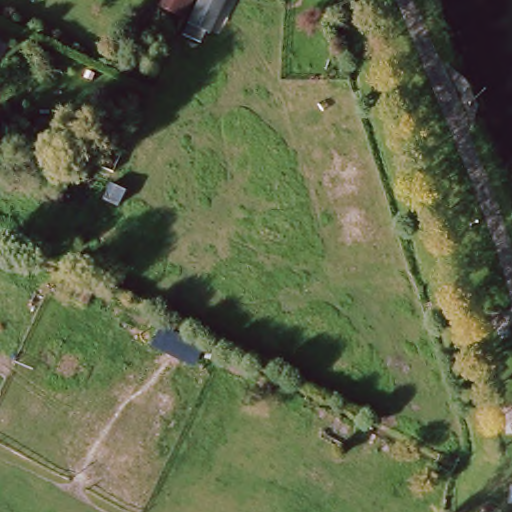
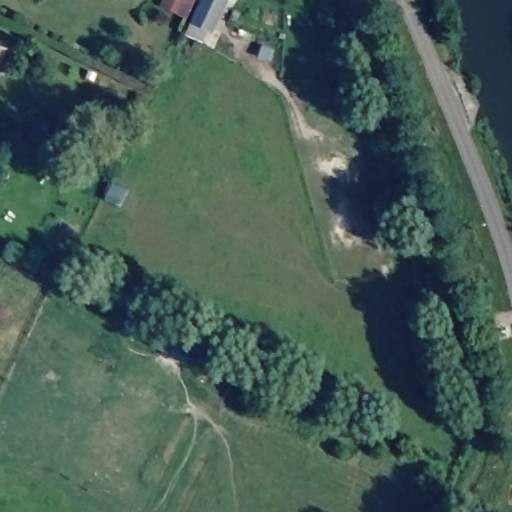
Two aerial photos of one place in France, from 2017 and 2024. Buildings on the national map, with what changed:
unchanged [(207,26),(189,16),(198,0),(220,0),(207,26)]

